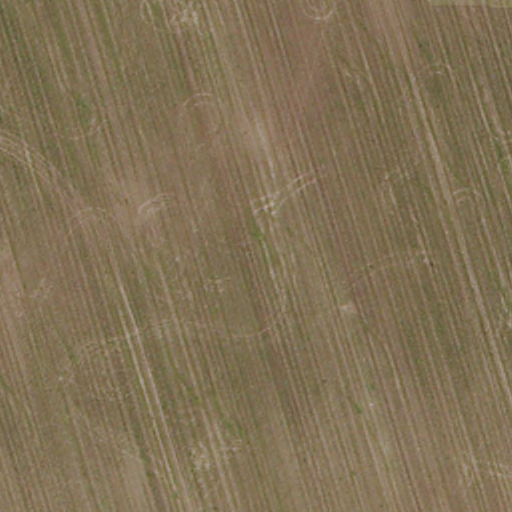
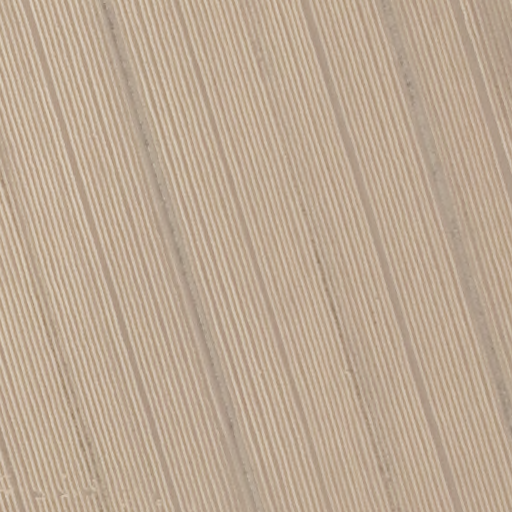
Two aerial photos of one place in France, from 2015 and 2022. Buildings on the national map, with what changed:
[]

